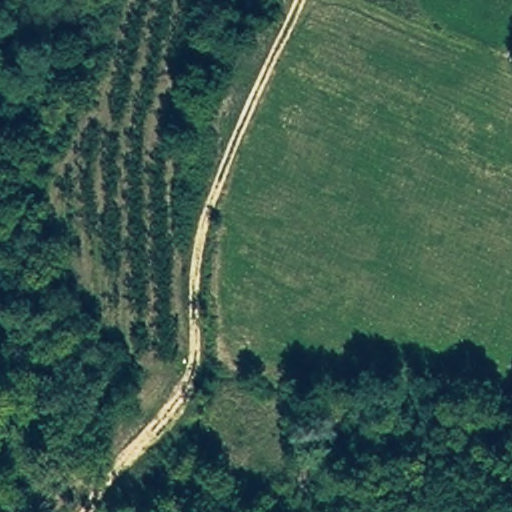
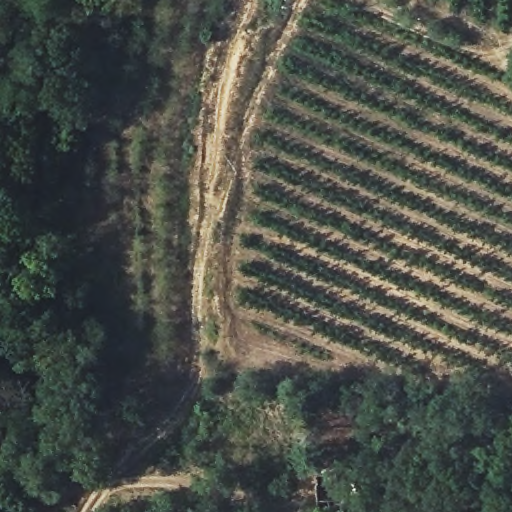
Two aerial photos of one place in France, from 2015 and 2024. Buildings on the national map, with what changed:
unchanged [(368,512),(354,512),(355,505),(370,506),(368,512)]

